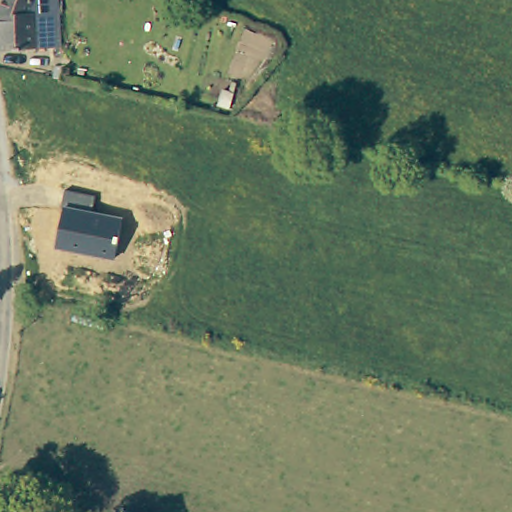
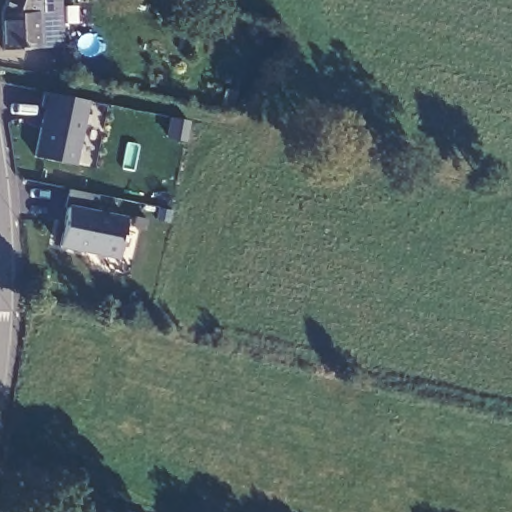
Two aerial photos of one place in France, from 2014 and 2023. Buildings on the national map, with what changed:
unchanged [(29,10),(34,11),(34,44),(0,46),(0,0),(33,0),(29,10)]
unchanged [(60,10),(61,42),(34,44),(34,11),(29,10),(33,0),(58,0),(60,10)]
new [(44,90),(88,100),(74,162),(30,153),(44,90)]
unchanged [(124,217),(114,258),(55,247),(64,207),(60,206),(65,190),(94,196),(92,211),(124,217)]

